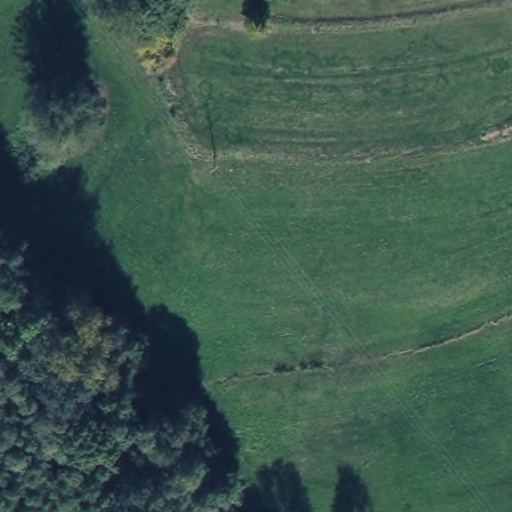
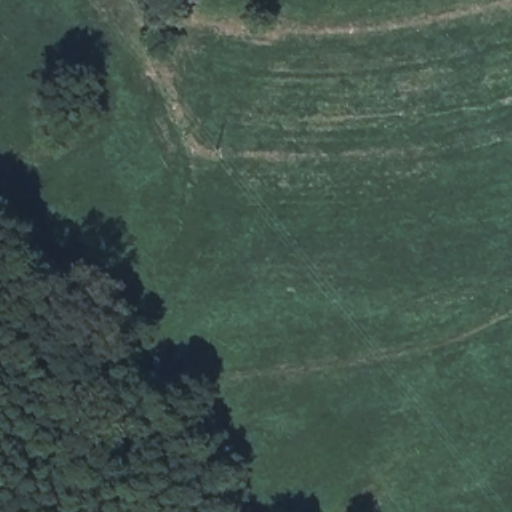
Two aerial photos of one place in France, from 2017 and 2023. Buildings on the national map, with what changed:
[]

